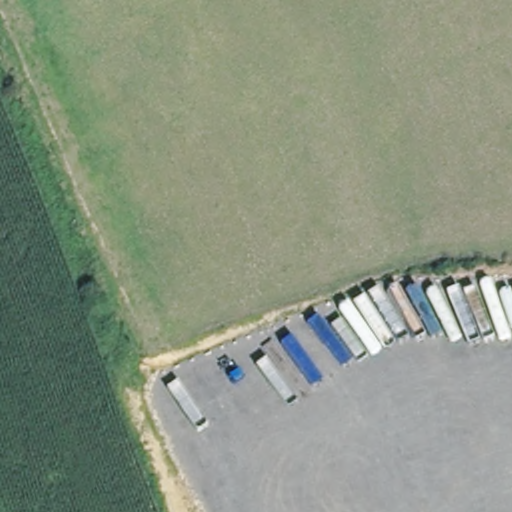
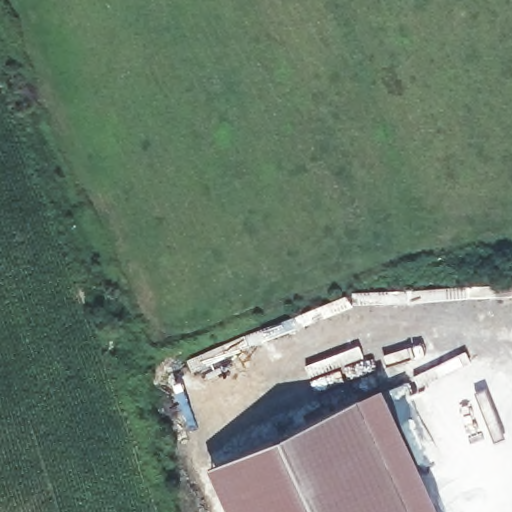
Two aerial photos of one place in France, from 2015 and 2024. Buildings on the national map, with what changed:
new [(208,467),(385,386),(443,512),(229,512),(208,467)]

